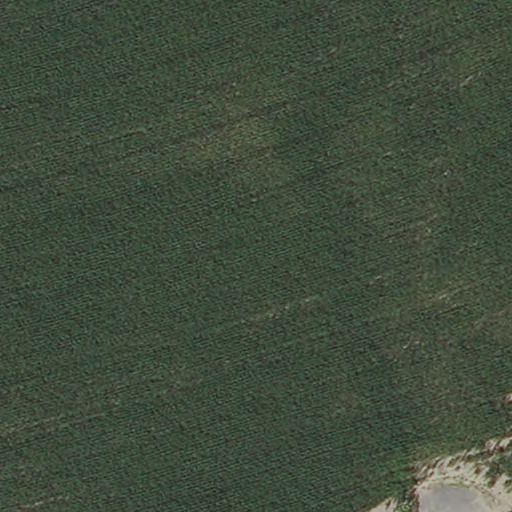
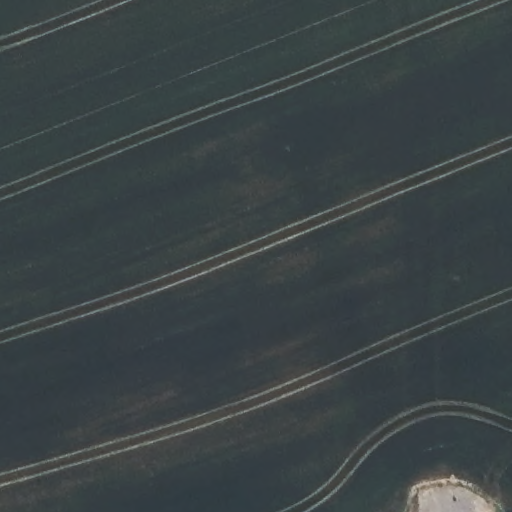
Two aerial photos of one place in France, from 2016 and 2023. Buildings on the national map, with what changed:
[]

